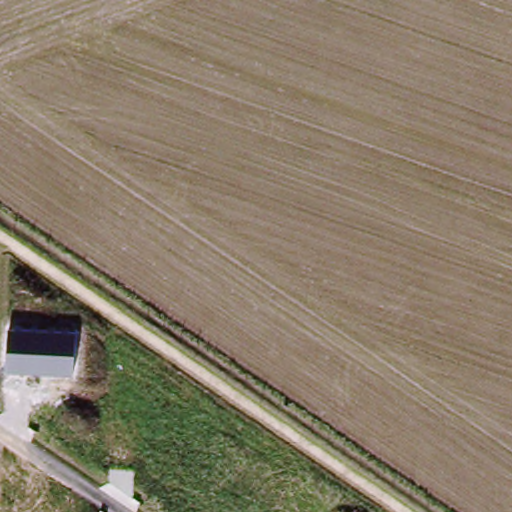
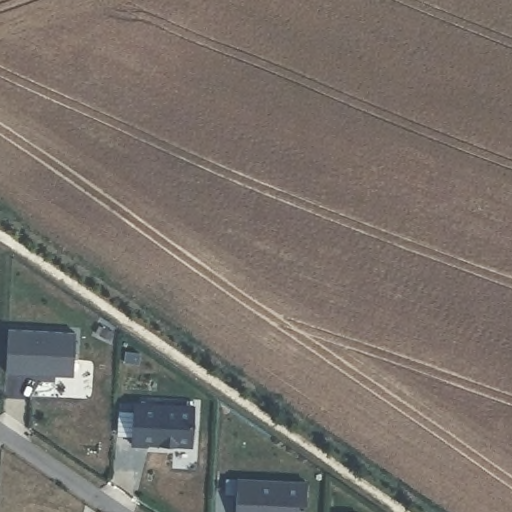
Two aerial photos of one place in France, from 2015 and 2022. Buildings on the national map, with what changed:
unchanged [(9,329),(75,332),(73,377),(7,371),(9,329)]
new [(135,405),(195,409),(192,448),(148,446),(148,447),(132,446),(135,405)]
new [(307,485),(306,512),(237,512),(238,481),(307,485)]

